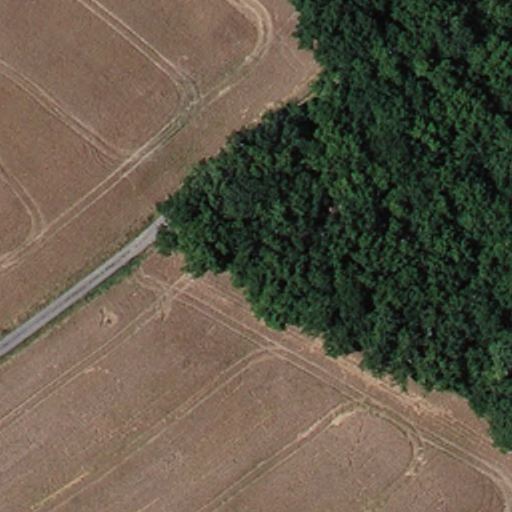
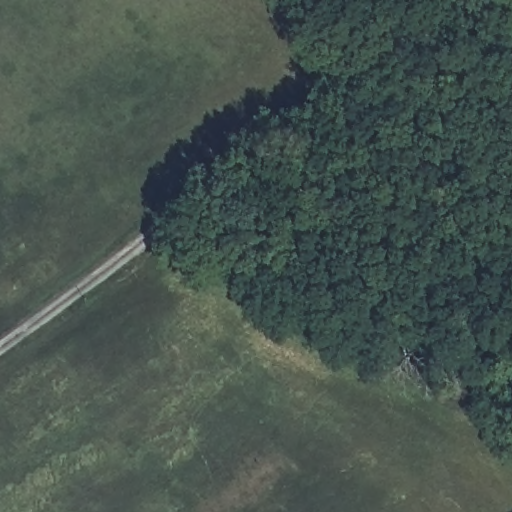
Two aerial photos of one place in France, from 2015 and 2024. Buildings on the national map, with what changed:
unchanged [(328,233),(315,196),(333,190),(346,227),(328,233)]

